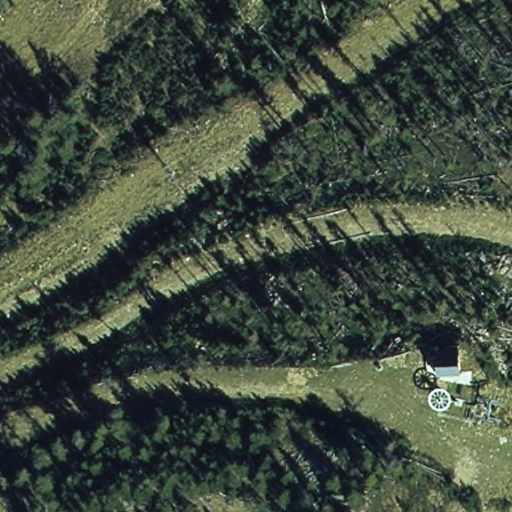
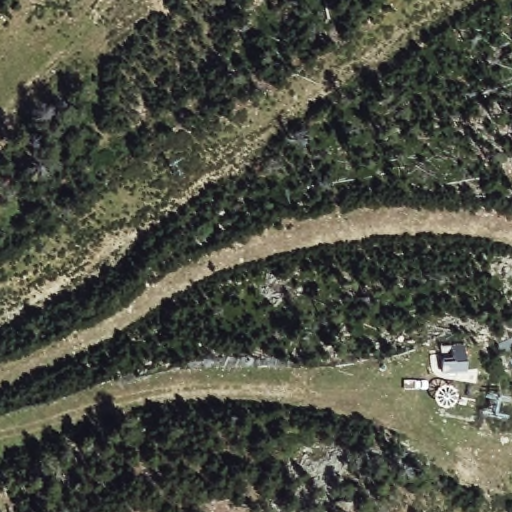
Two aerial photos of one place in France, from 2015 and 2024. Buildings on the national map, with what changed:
unchanged [(461,346),(463,377),(436,380),(434,346),(461,346)]

